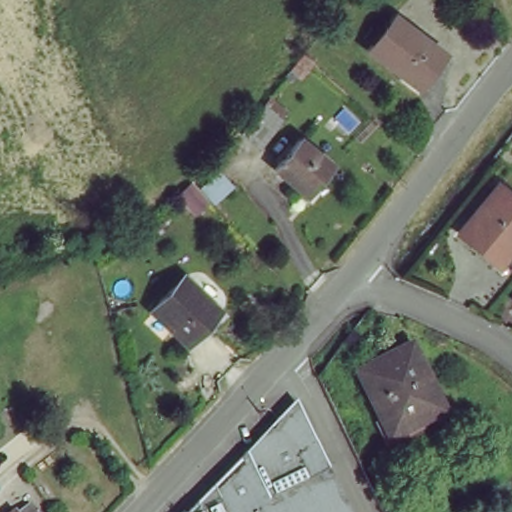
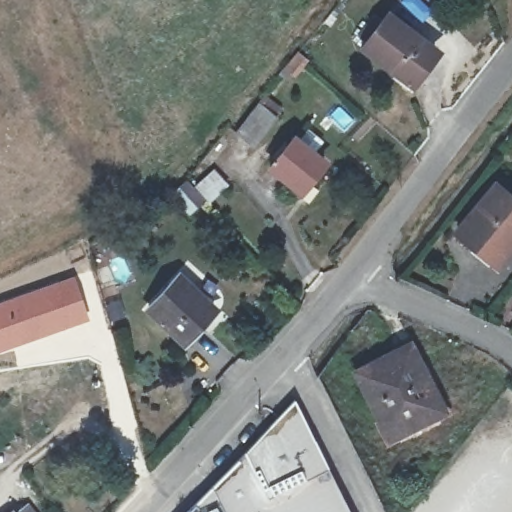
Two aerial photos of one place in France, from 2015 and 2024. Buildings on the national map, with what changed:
unchanged [(392,21),(442,58),(415,92),(366,55),(392,21)]
unchanged [(299,53),(309,63),(296,78),(286,69),(299,53)]
unchanged [(277,118),(254,148),(238,134),(260,105),(277,118)]
unchanged [(328,164),(304,194),(274,170),(299,140),(328,164)]
unchanged [(497,192),(512,204),(512,255),(507,262),(482,244),(475,252),(460,238),(497,192)]
new [(90,320),(0,352),(0,301),(75,275),(90,320)]
unchanged [(178,278),(213,310),(181,343),(149,310),(178,278)]
unchanged [(412,345),(442,406),(439,408),(447,421),(402,445),(397,434),(393,435),(360,371),(412,345)]
unchanged [(196,512),(197,512),(232,476),(259,448),(297,409),(347,512),(196,512)]
unchanged [(415,512),(402,512),(400,508),(412,504),(415,512)]
unchanged [(30,512),(28,512),(29,511),(30,512)]

